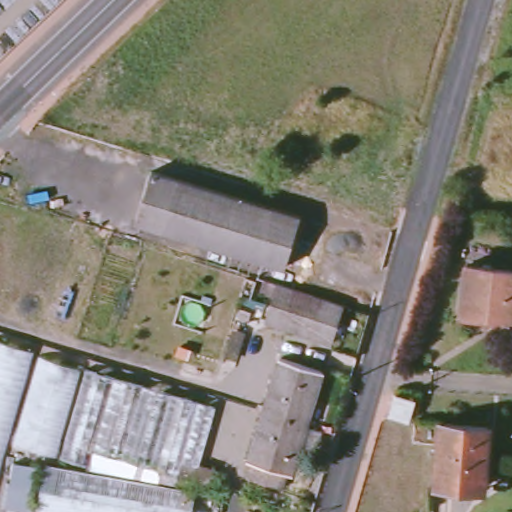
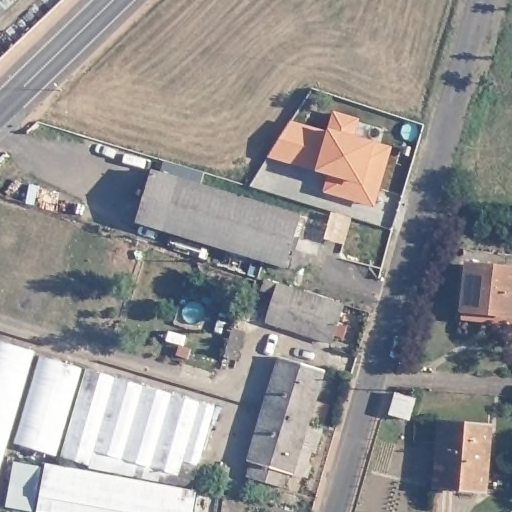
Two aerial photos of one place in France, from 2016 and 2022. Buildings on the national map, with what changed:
new [(324,193),(329,176),(315,172),(266,158),(290,121),(326,132),(328,128),(333,110),(360,119),(357,137),(374,142),(391,147),(374,207),(324,193)]
unchanged [(138,219),(158,168),(306,219),(287,270),(138,219)]
unchanged [(512,273),(512,317),(463,314),(467,269),(512,273)]
unchanged [(343,311),(331,347),(268,325),(279,288),(343,311)]
unchanged [(198,512),(35,512),(9,507),(0,506),(0,343),(218,407),(201,460),(228,473),(223,496),(201,492),(198,512)]
unchanged [(286,358),(329,373),(310,427),(267,412),(286,358)]
unchanged [(406,412),(401,429),(388,426),(393,408),(406,412)]
unchanged [(310,427),(294,475),(288,474),(282,488),(251,477),(258,463),(250,460),(267,412),(310,427)]
unchanged [(438,492),(441,428),(492,429),(491,469),(482,469),(481,492),(438,492)]

